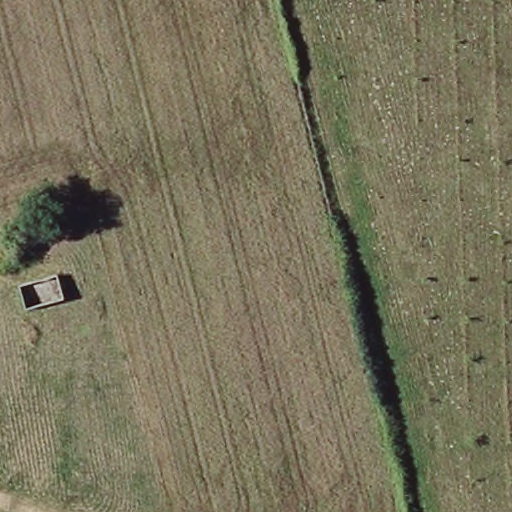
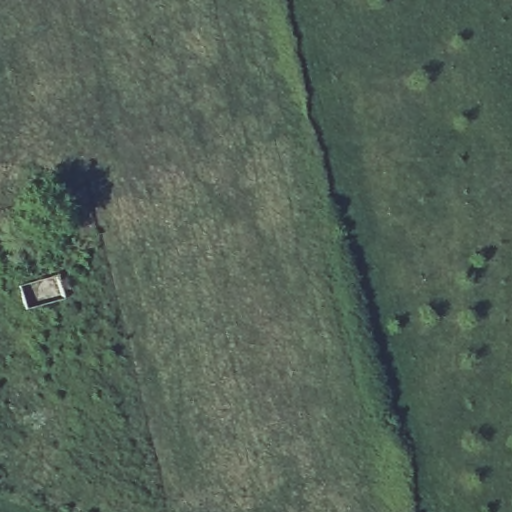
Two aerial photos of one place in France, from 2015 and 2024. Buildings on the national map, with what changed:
unchanged [(18,291),(55,279),(63,302),(24,314),(18,291)]

